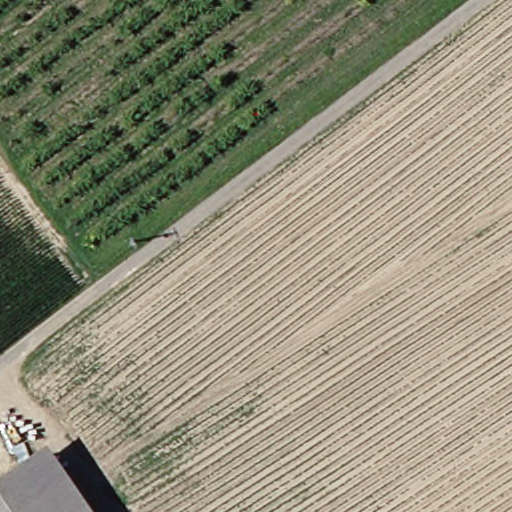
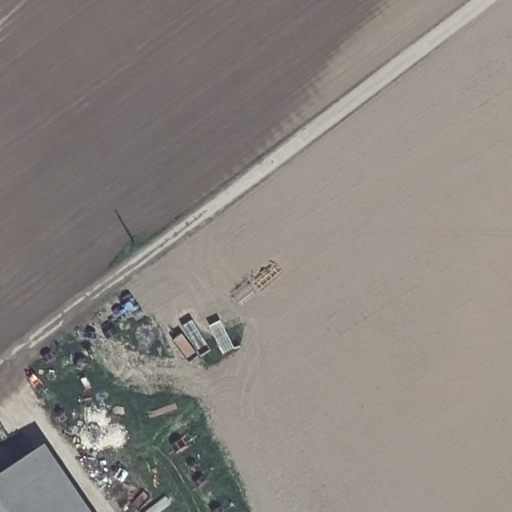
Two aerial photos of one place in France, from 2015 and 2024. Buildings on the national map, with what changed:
unchanged [(12,464),(31,449),(76,512),(47,512),(12,464)]
unchanged [(47,512),(0,512),(0,473),(12,464),(47,512)]

